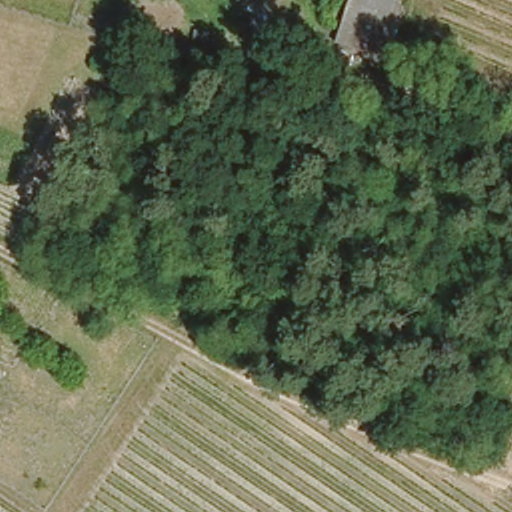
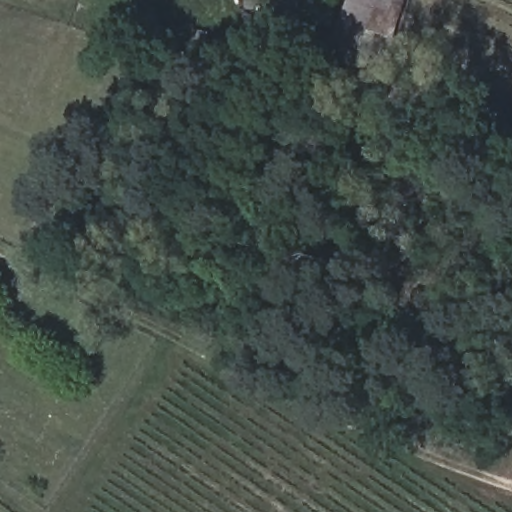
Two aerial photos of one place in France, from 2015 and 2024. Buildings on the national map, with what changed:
unchanged [(330,54),(348,0),(407,0),(384,70),(330,54)]

